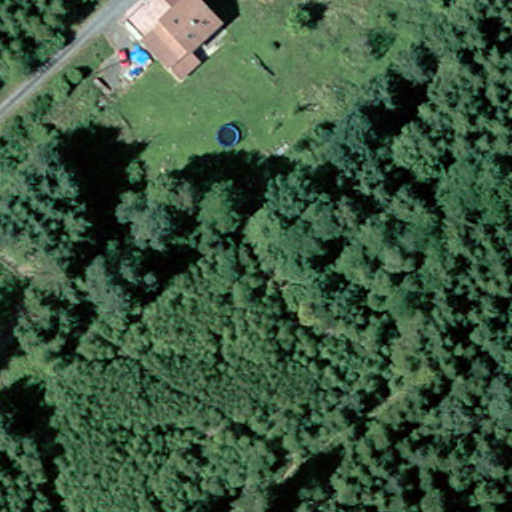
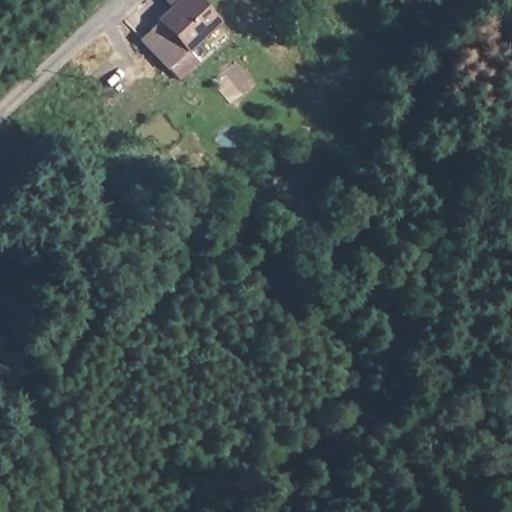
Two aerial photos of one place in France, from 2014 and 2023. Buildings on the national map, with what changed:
unchanged [(187,35),(162,6),(169,0),(202,0),(214,15),(187,35)]
unchanged [(198,47),(182,62),(145,22),(162,6),(187,35),(198,47)]

